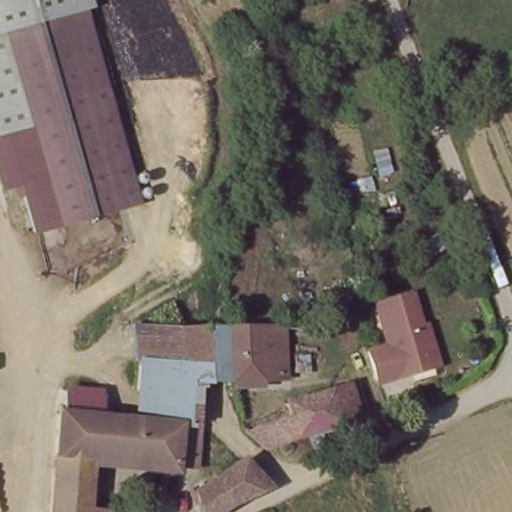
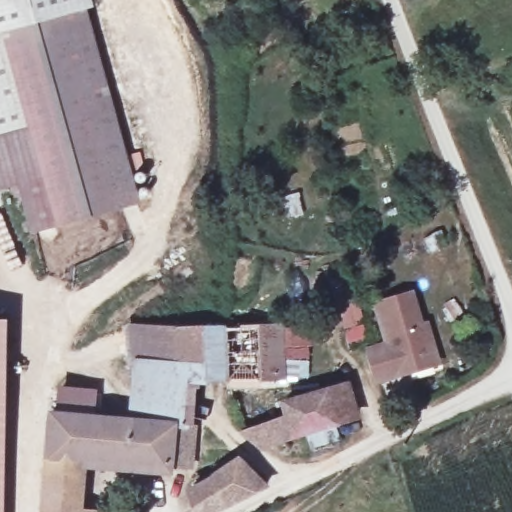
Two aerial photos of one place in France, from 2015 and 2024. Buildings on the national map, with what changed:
unchanged [(27,129),(0,134),(0,0),(88,0),(90,7),(85,10),(1,32),(27,129)]
unchanged [(31,235),(15,190),(0,191),(0,134),(27,129),(1,32),(85,10),(141,201),(31,235)]
unchanged [(397,375),(376,381),(366,350),(386,344),(374,304),(409,294),(419,326),(425,324),(435,357),(437,363),(397,375)]
new [(0,512),(0,319),(5,319),(3,512),(0,512)]
unchanged [(132,359),(126,359),(125,324),(280,323),(282,376),(261,377),(262,388),(233,389),(232,382),(190,383),(191,420),(173,420),(131,419),(132,359)]
unchanged [(304,452),(280,456),(276,440),(265,444),(248,429),(284,414),(281,398),(325,385),(343,379),(354,415),(336,421),(299,433),(303,449),(304,452)]
unchanged [(46,387),(90,391),(89,418),(43,416),(46,387)]
unchanged [(89,418),(131,419),(173,420),(173,462),(82,465),(81,512),(38,512),(43,416),(89,418)]
unchanged [(191,420),(193,447),(198,447),(208,483),(181,491),(180,462),(173,462),(173,420),(191,420)]
unchanged [(198,447),(215,441),(225,460),(234,459),(256,489),(205,512),(183,512),(181,491),(208,483),(198,447)]

